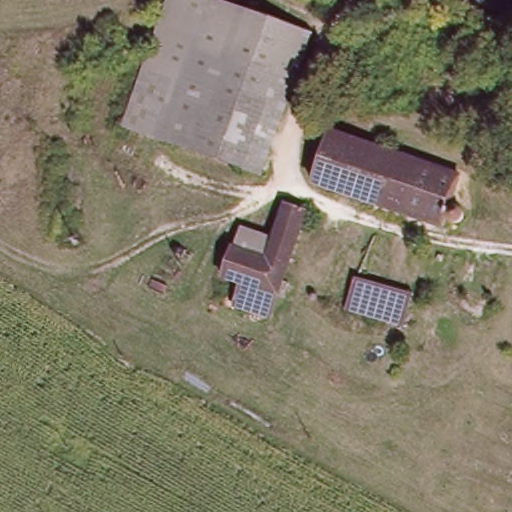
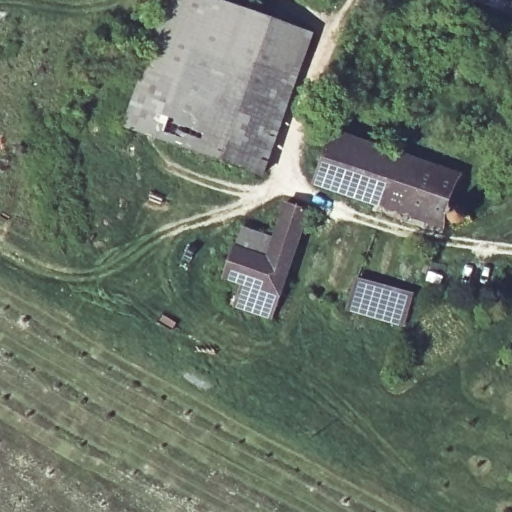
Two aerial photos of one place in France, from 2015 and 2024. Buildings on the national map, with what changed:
unchanged [(261,174),(122,126),(167,0),(220,0),(311,32),(261,174)]
unchanged [(448,195),(451,192),(454,191),(459,192),(462,193),(465,195),(466,197),(467,201),(467,203),(467,206),(465,209),(463,211),(458,213),(456,213),(452,213),(449,211),(447,209),(446,206),(445,203),(445,201),(438,220),(431,218),(308,176),(325,126),(455,170),(446,197),(447,195),(448,195)]
unchanged [(235,288),(217,279),(237,225),(266,232),(278,199),(305,207),(267,316),(228,304),(235,288)]
unchanged [(355,275),(413,292),(402,324),(346,307),(355,275)]

